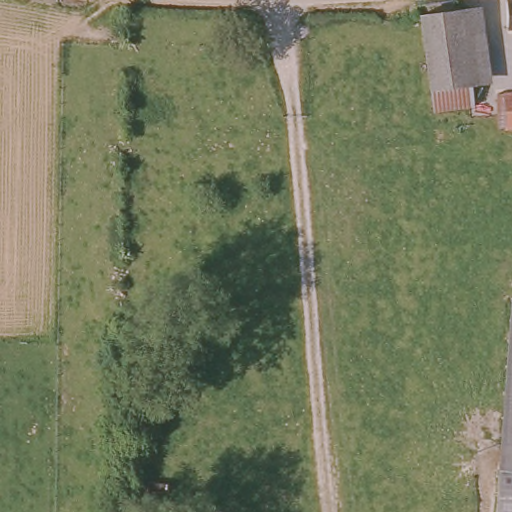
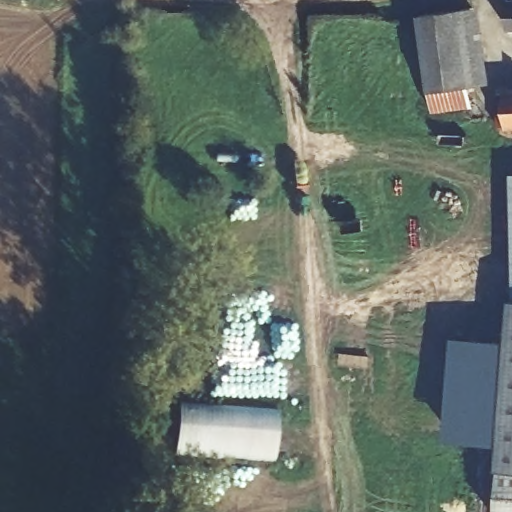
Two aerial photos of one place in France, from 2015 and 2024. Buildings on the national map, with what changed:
unchanged [(469,9),(478,99),(425,103),(415,15),(469,9)]
unchanged [(497,40),(497,20),(512,20),(512,40),(497,40)]
unchanged [(512,105),(512,124),(505,123),(492,123),(492,105),(500,105),(512,105)]
unchanged [(512,301),(512,512),(493,512),(512,301)]
new [(454,336),(508,341),(499,442),(445,438),(454,336)]
new [(278,412),(275,468),(180,459),(182,410),(278,412)]

